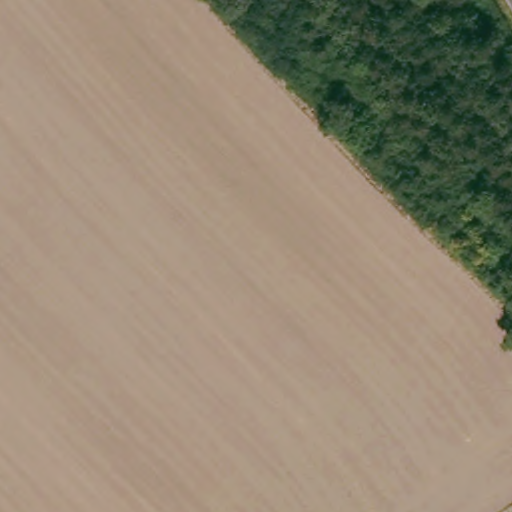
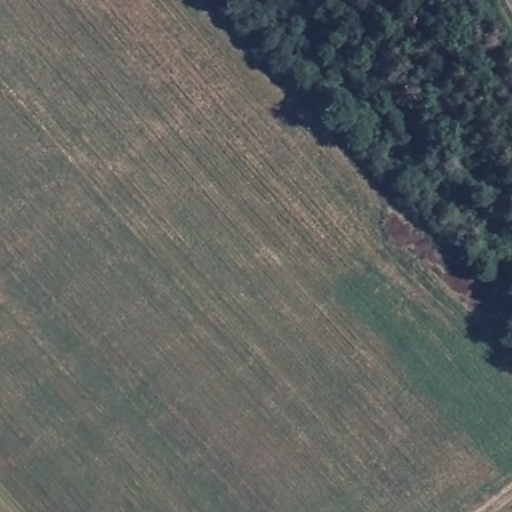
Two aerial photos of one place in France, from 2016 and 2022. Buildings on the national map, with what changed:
[]

